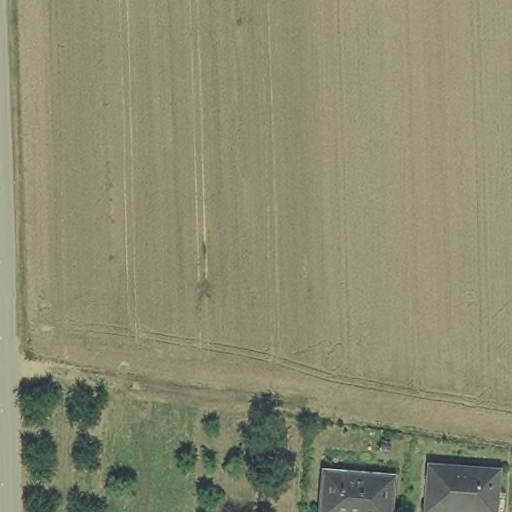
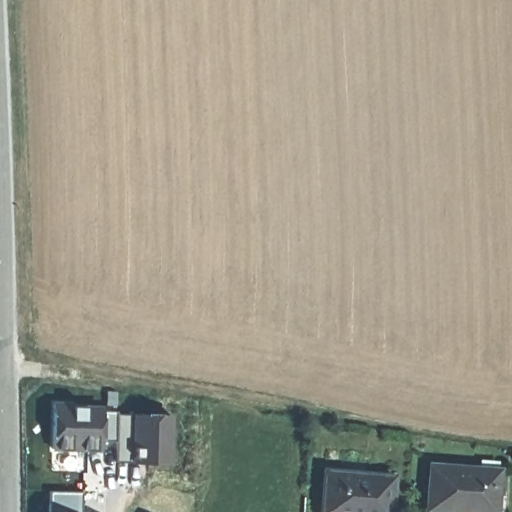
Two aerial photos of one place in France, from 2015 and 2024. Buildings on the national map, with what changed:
new [(102,405),(102,412),(118,411),(117,417),(175,417),(174,461),(121,462),(119,443),(103,443),(102,450),(55,448),(57,407),(102,405)]
unchanged [(320,504),(327,460),(395,471),(389,512),(370,512),(355,509),(354,512),(316,512),(317,506),(320,504)]
unchanged [(464,510),(463,512),(432,512),(433,467),(502,468),(501,510),(464,510)]
new [(83,512),(51,512),(52,494),(84,493),(83,512)]

